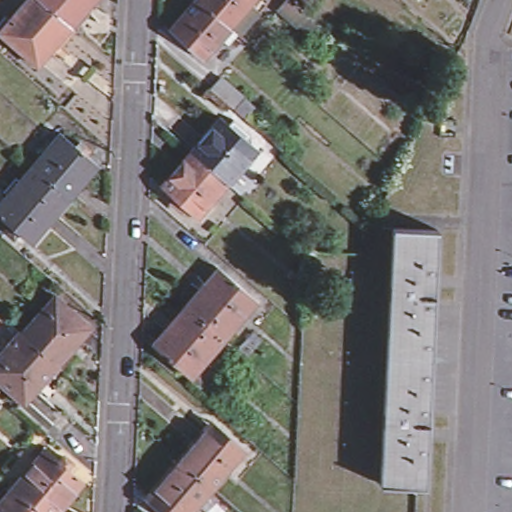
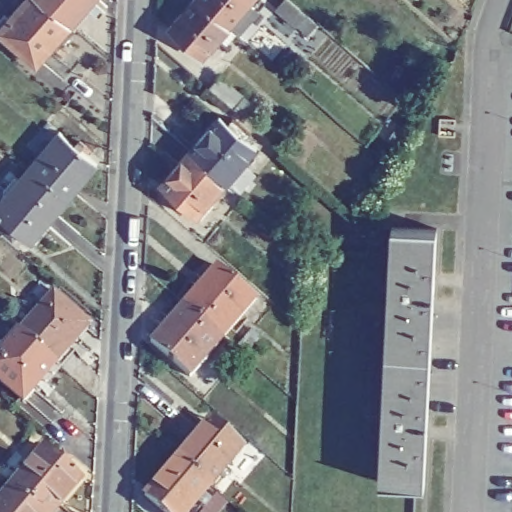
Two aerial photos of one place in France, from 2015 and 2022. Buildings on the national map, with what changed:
unchanged [(0,20),(4,16),(8,19),(25,0),(40,0),(70,26),(36,65),(0,34),(0,20)]
unchanged [(40,0),(93,0),(70,26),(40,0)]
unchanged [(187,50),(183,54),(175,47),(179,42),(163,29),(188,0),(247,0),(244,4),(253,12),(233,35),(230,32),(221,42),(215,37),(197,57),(187,50)]
unchanged [(297,25),(296,27),(276,10),(283,0),(288,0),(306,15),(316,24),(307,34),(297,25)]
unchanged [(219,76),(254,106),(243,117),(209,87),(219,76)]
unchanged [(255,149),(226,182),(190,151),(219,117),(255,149)]
unchanged [(59,132),(74,145),(78,141),(83,145),(79,150),(97,165),(69,197),(31,165),(59,132)]
unchanged [(169,202),(174,197),(160,185),(190,151),(226,182),(196,217),(184,206),(180,211),(169,202)]
unchanged [(10,225),(0,216),(0,201),(7,194),(2,191),(15,177),(19,180),(28,168),(31,165),(69,197),(66,201),(31,242),(16,230),(12,235),(6,230),(10,225)]
unchanged [(391,227),(436,229),(424,485),(379,482),(391,227)]
unchanged [(217,267),(256,301),(222,338),(184,305),(217,267)]
unchanged [(54,294),(90,326),(57,364),(20,332),(21,332),(54,294)]
unchanged [(151,343),(184,305),(222,338),(190,377),(151,343)]
unchanged [(0,352),(19,330),(21,332),(20,332),(57,364),(22,402),(0,383),(0,352)]
unchanged [(203,427),(209,420),(225,433),(244,448),(211,487),(177,457),(203,427)]
unchanged [(59,466),(64,461),(69,466),(65,471),(82,485),(59,512),(36,512),(12,491),(44,452),(59,466)]
unchanged [(204,509),(197,503),(189,512),(163,512),(145,497),(177,457),(211,487),(204,495),(211,501),(204,509)]
unchanged [(36,512),(0,512),(0,504),(12,491),(36,512)]

